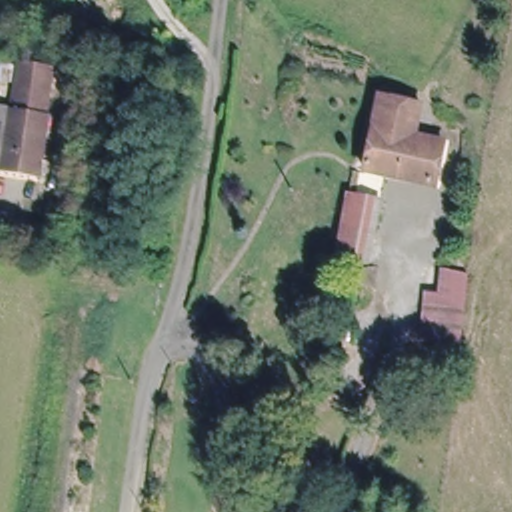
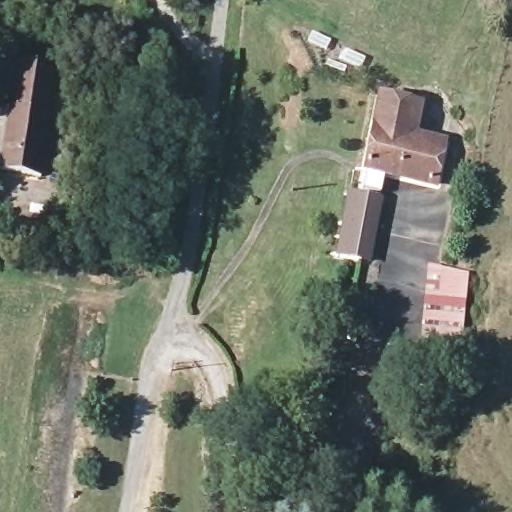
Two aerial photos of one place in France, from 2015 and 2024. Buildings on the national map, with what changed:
unchanged [(12,109),(19,62),(56,67),(50,115),(55,116),(45,180),(0,172),(0,106),(8,107),(12,109)]
unchanged [(375,129),(380,102),(419,110),(416,136),(375,129)]
unchanged [(437,185),(366,173),(375,129),(416,136),(443,140),(437,185)]
unchanged [(367,262),(335,257),(345,192),(378,195),(367,262)]
unchanged [(460,350),(422,343),(430,296),(439,297),(445,266),(475,266),(460,350)]

